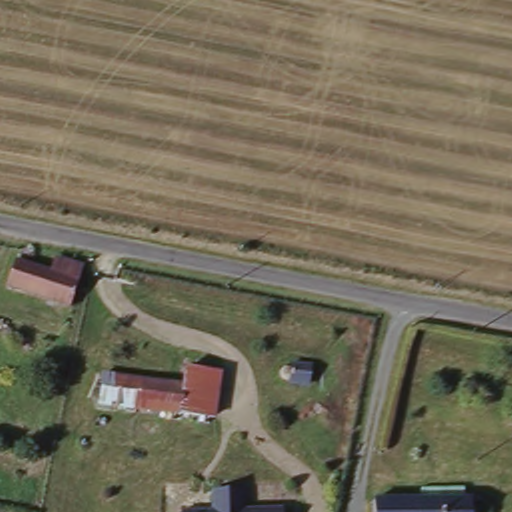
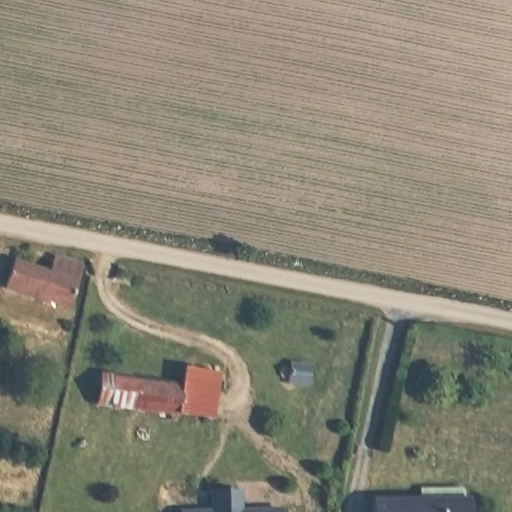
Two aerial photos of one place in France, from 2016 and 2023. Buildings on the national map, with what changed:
unchanged [(81,266),(69,307),(5,288),(14,260),(52,272),(56,258),(81,266)]
unchanged [(309,366),(306,385),(289,382),(292,363),(309,366)]
unchanged [(181,387),(185,368),(218,372),(212,417),(178,412),(181,387)]
unchanged [(181,387),(178,412),(97,400),(102,375),(181,387)]
unchanged [(469,503),(469,512),(373,512),(372,505),(420,505),(420,493),(463,493),(464,504),(469,503)]
unchanged [(210,505),(229,505),(229,512),(211,512),(210,505)]

